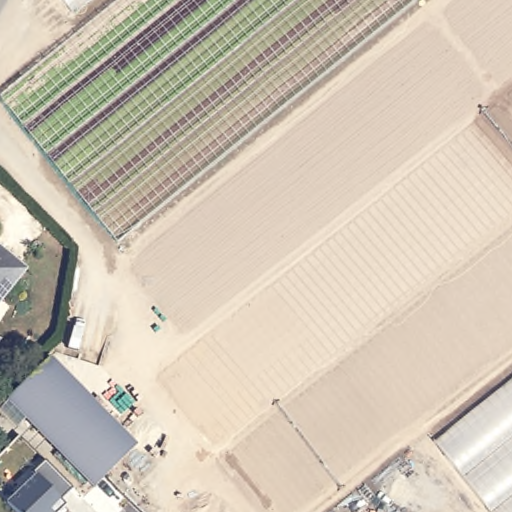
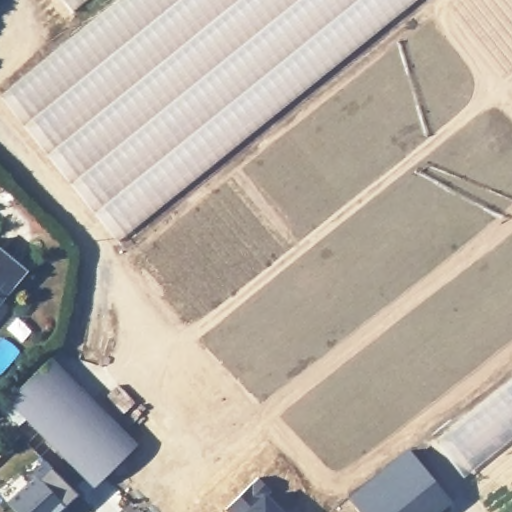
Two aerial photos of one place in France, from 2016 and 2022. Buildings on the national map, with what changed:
unchanged [(0,100),(0,95),(118,0),(415,0),(119,241),(0,100)]
unchanged [(71,6),(66,0),(78,0),(71,6)]
unchanged [(0,304),(0,254),(25,274),(0,304)]
unchanged [(138,442),(93,486),(9,401),(51,357),(138,442)]
unchanged [(495,512),(436,439),(512,379),(512,512),(495,512)]
new [(452,502),(440,512),(358,512),(347,498),(408,448),(452,502)]
unchanged [(59,501),(66,508),(62,512),(14,512),(6,504),(35,476),(31,473),(46,459),(73,487),(59,501)]
new [(256,476),(273,493),(268,498),(283,512),(230,512),(225,507),(256,476)]

